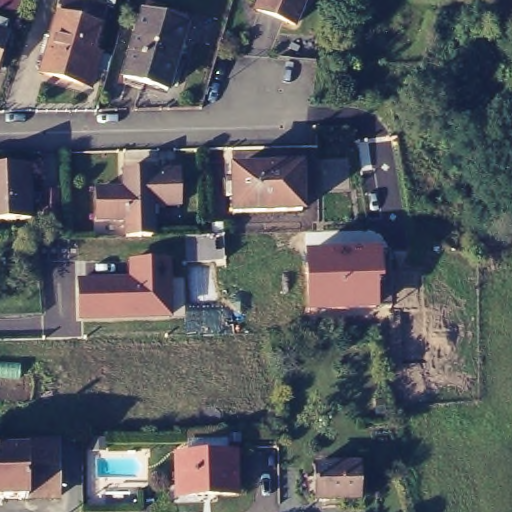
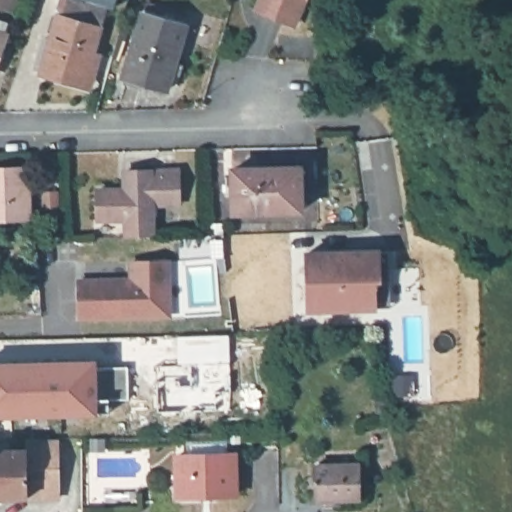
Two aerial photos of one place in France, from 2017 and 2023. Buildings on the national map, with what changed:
unchanged [(27,17),(0,7),(0,0),(20,0),(31,4),(27,17)]
unchanged [(89,87),(39,73),(41,71),(35,70),(34,69),(34,66),(42,38),(44,37),(50,40),(52,33),(46,32),(51,15),(57,17),(62,0),(116,0),(114,6),(107,4),(92,50),(112,56),(107,72),(95,68),(89,87)]
unchanged [(257,14),(262,0),(306,0),(295,29),(257,14)]
unchanged [(143,11),(185,24),(167,89),(143,83),(141,87),(125,83),(125,77),(123,77),(143,11)]
unchanged [(4,40),(0,52),(0,39),(4,40)]
unchanged [(130,232),(130,214),(103,213),(102,185),(129,185),(129,166),(182,165),(183,200),(157,201),(157,231),(130,232)]
unchanged [(29,219),(0,219),(0,169),(28,167),(29,219)]
unchanged [(232,170),(299,168),(300,210),(233,212),(232,170)]
unchanged [(58,192),(58,217),(43,218),(42,192),(58,192)]
unchanged [(223,234),(211,234),(211,223),(223,223),(223,234)]
unchanged [(382,285),(376,286),(377,310),(305,312),(303,250),(379,246),(382,285)]
unchanged [(174,318),(76,321),(75,276),(125,273),(125,259),(172,257),(174,318)]
new [(98,412),(0,415),(0,363),(95,360),(95,366),(128,365),(129,398),(111,398),(111,412),(98,412)]
unchanged [(56,438),(58,496),(53,496),(0,498),(0,451),(27,450),(26,439),(52,438),(56,438)]
unchanged [(176,457),(234,454),(235,494),(177,496),(176,457)]
unchanged [(320,466),(363,465),(363,499),(321,500),(320,466)]

